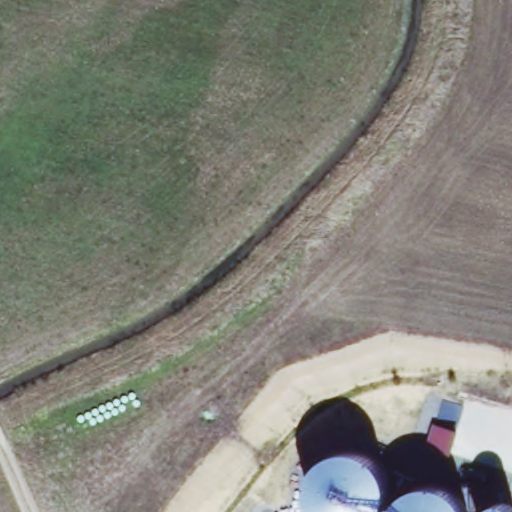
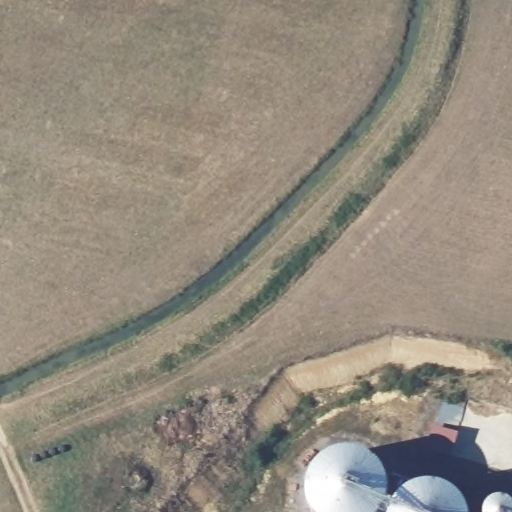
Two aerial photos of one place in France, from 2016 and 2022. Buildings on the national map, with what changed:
unchanged [(388,480),(390,492),(388,504),(393,507),(398,501),(412,487),(431,484),(446,486),(461,496),(470,509),(471,512),(313,512),(311,500),(311,483),(316,468),(326,457),(337,450),(355,451),(365,453),(376,459),(385,468),(388,480)]
unchanged [(488,512),(490,507),(496,502),(504,499),(512,500),(512,512),(488,512)]

